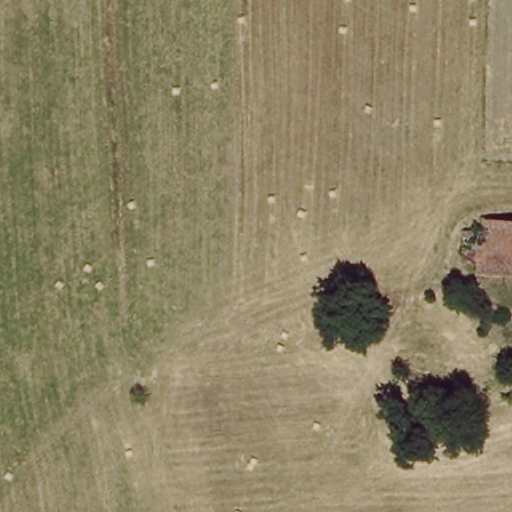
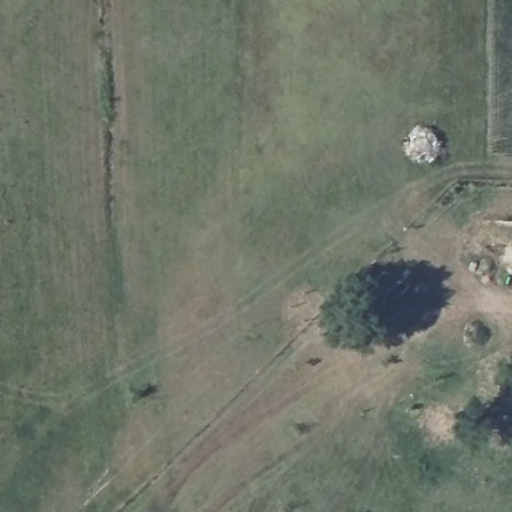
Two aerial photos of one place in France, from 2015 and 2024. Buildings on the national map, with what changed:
unchanged [(471,211),(512,210),(512,263),(472,265),(471,211)]

